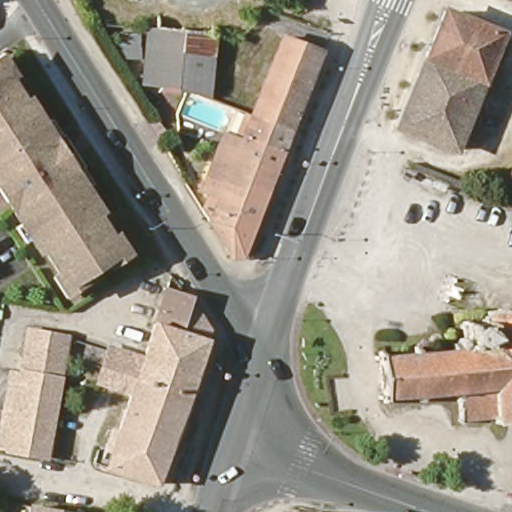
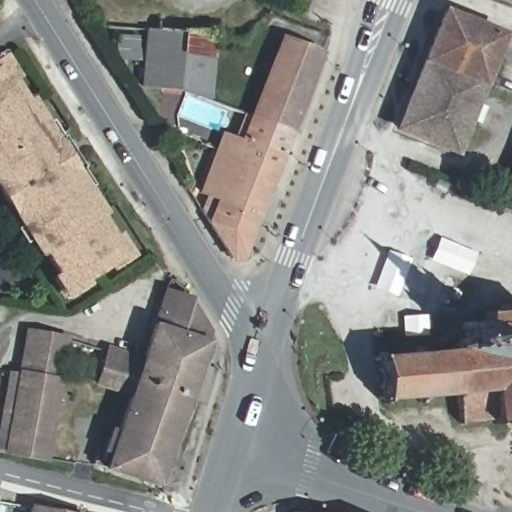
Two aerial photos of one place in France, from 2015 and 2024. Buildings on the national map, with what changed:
unchanged [(440,21),(444,10),(445,10),(503,34),(483,85),(457,152),(397,129),(440,21)]
unchanged [(182,88),(181,89),(147,85),(152,30),(162,31),(189,33),(182,88)]
unchanged [(256,110),(287,31),(328,47),(297,125),(256,110)]
unchanged [(214,96),(182,88),(189,33),(220,35),(214,96)]
unchanged [(144,58),(124,58),(125,36),(145,36),(144,58)]
unchanged [(47,253),(44,256),(0,189),(0,72),(4,70),(29,108),(32,105),(62,151),(74,170),(105,216),(100,219),(125,257),(72,291),(47,253)]
unchanged [(227,236),(208,206),(215,190),(207,186),(229,129),(242,134),(252,108),(256,110),(297,125),(288,150),(269,142),(257,173),(252,171),(227,236)]
unchanged [(247,254),(239,255),(227,236),(252,171),(257,173),(269,142),(288,150),(247,254)]
unchanged [(512,176),(512,178),(511,178),(512,176)]
unchanged [(119,432),(133,388),(117,383),(115,387),(109,385),(97,381),(102,368),(107,351),(142,362),(166,290),(191,298),(212,331),(157,485),(111,470),(107,468),(112,452),(105,450),(108,440),(112,430),(119,432)]
unchanged [(497,418),(466,420),(467,424),(463,425),(462,421),(459,421),(459,417),(462,417),(461,397),(457,398),(457,393),(425,396),(425,400),(421,401),(421,396),(390,399),(390,403),(387,403),(386,400),(382,400),(381,396),(386,395),(382,360),(377,360),(377,356),(382,356),(382,352),(385,351),(385,356),(417,353),(416,348),(420,348),(421,353),(455,350),(453,343),(457,343),(457,340),(461,337),(465,336),(464,327),(462,327),(462,323),(464,322),(463,318),(468,318),(468,322),(484,321),(483,319),(485,319),(485,316),(488,316),(487,311),(512,310),(512,422),(497,423),(497,418)]
unchanged [(6,396),(12,366),(22,368),(25,350),(29,327),(67,334),(65,347),(63,357),(46,453),(7,446),(7,444),(0,443),(0,430),(6,396)]
unchanged [(36,503),(77,511),(78,508),(90,510),(90,512),(34,512),(36,503)]

